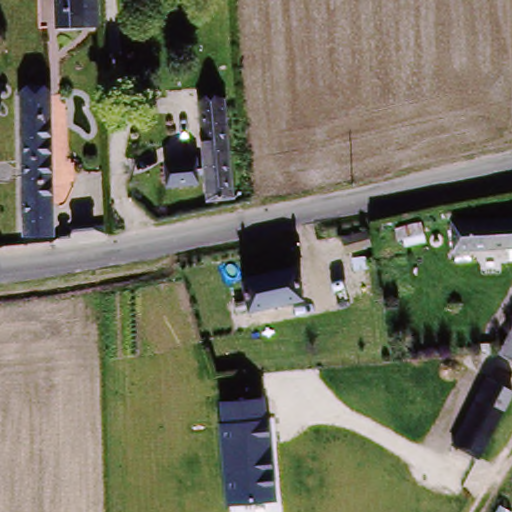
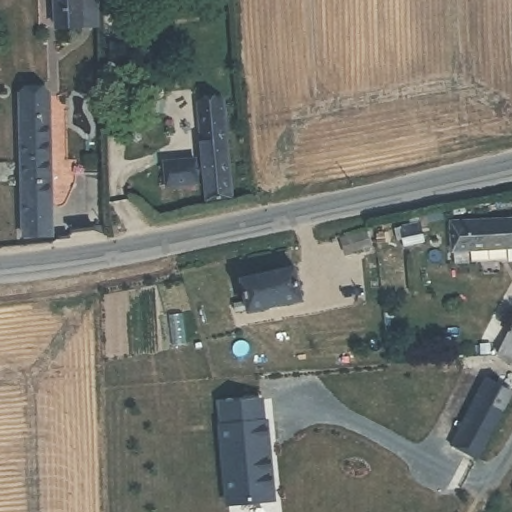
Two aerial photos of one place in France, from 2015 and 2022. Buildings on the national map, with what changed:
unchanged [(60,9),(60,0),(101,0),(101,6),(102,20),(61,21),(60,9)]
unchanged [(50,92),(53,233),(26,233),(23,93),(50,92)]
unchanged [(235,199),(211,199),(203,100),(227,100),(235,199)]
unchanged [(510,260),(510,247),(455,250),(455,224),(512,220),(512,260),(510,260)]
unchanged [(302,297),(240,311),(238,301),(249,297),(247,275),(298,265),(302,297)]
unchanged [(498,354),(510,331),(512,328),(512,393),(486,442),(460,428),(498,354)]
unchanged [(231,502),(230,445),(230,430),(258,430),(259,442),(262,500),(231,502)]

